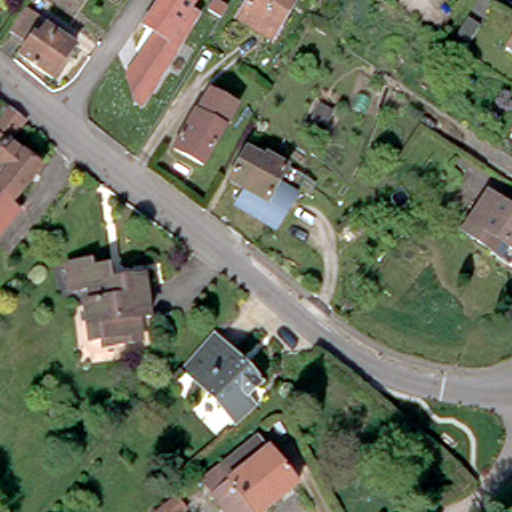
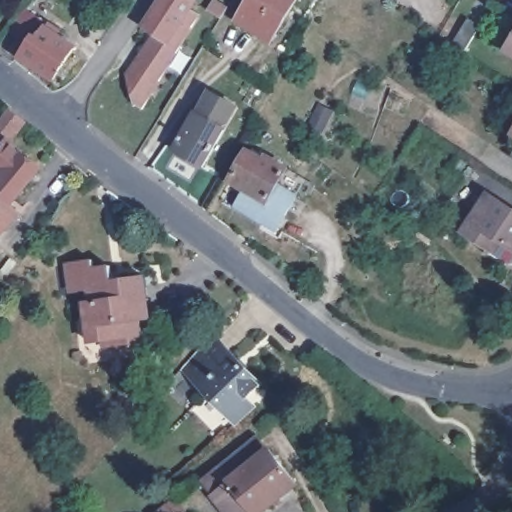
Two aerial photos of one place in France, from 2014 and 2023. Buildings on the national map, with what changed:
unchanged [(198,14),(140,107),(133,102),(127,74),(155,32),(143,24),(160,0),(193,0),(188,7),(198,14)]
unchanged [(219,0),(225,0),(232,5),(226,15),(213,9),(219,0)]
unchanged [(242,17),(252,0),(300,0),(276,39),(242,17)]
unchanged [(53,75),(21,54),(28,43),(10,29),(26,7),(47,21),(50,18),(63,26),(58,34),(74,44),(53,75)]
unchanged [(480,22),(465,47),(452,39),(468,15),(480,22)]
unchanged [(504,51),(512,39),(512,56),(504,51)]
unchanged [(232,115),(203,163),(173,146),(203,96),(232,115)]
unchanged [(10,139),(40,165),(10,200),(19,207),(0,230),(0,115),(7,106),(25,121),(10,139)]
unchanged [(505,142),(512,131),(512,147),(505,142)]
unchanged [(262,162),(265,157),(287,170),(277,187),(295,198),(277,231),(236,209),(245,193),(228,184),(247,154),(262,162)]
unchanged [(330,195),(309,180),(320,164),(342,179),(330,195)]
unchanged [(497,234),(487,247),(460,225),(488,190),(512,209),(512,246),(497,234)]
unchanged [(100,337),(87,326),(87,316),(85,300),(92,300),(91,285),(80,286),(75,282),(74,259),(100,256),(101,263),(107,263),(113,268),(113,278),(145,275),(145,279),(149,317),(139,318),(140,338),(117,340),(100,342),(100,337)]
unchanged [(235,420),(228,412),(182,365),(212,330),(261,380),(247,394),(254,402),(235,420)]
unchanged [(133,389),(122,403),(114,395),(125,382),(133,389)]
unchanged [(200,479),(255,432),(295,479),(254,512),(227,512),(200,479)]
unchanged [(175,495),(186,507),(181,512),(155,512),(175,495)]

